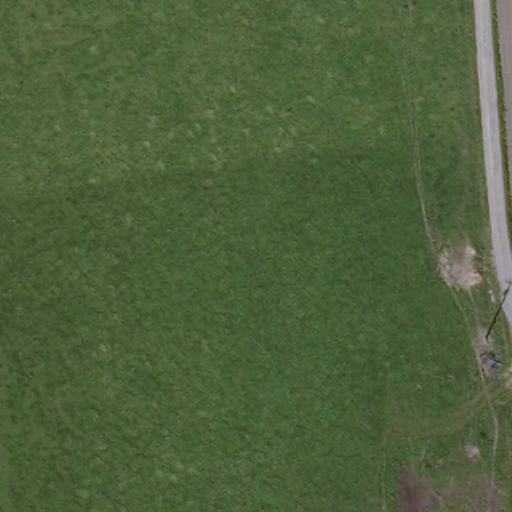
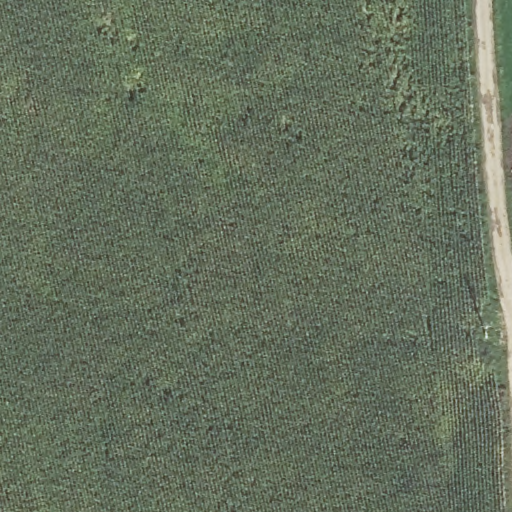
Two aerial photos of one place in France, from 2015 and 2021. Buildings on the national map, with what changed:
[]

